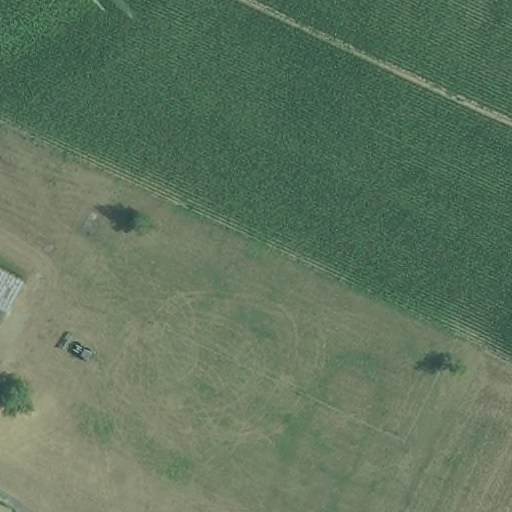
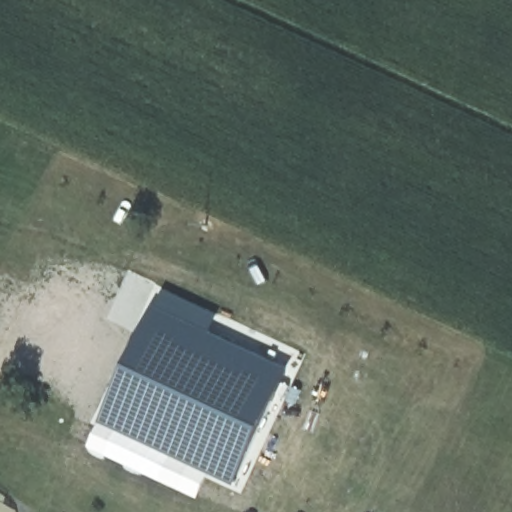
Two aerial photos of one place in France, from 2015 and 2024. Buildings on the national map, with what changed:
unchanged [(28,285),(25,293),(0,338),(0,269),(28,285)]
new [(288,360),(232,482),(95,419),(155,297),(288,360)]

